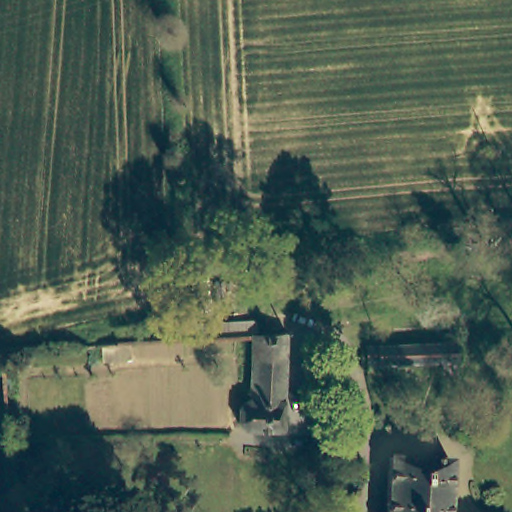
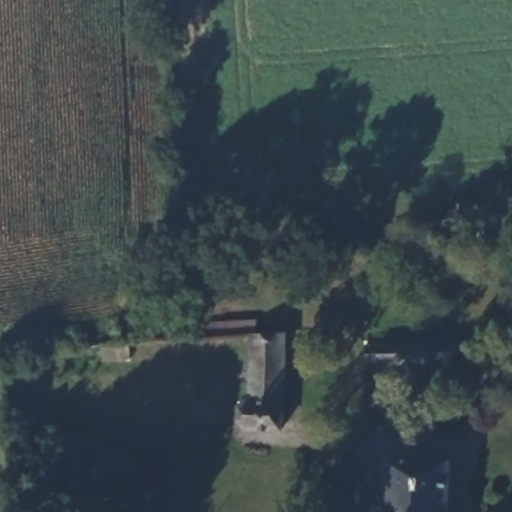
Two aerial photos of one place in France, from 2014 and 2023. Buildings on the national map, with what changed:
unchanged [(278,310),(274,274),(341,269),(345,305),(278,310)]
unchanged [(233,418),(235,397),(248,396),(252,334),(287,331),(283,427),(242,425),(233,418)]
unchanged [(384,361),(367,362),(366,348),(455,344),(455,362),(385,366),(384,361)]
unchanged [(449,512),(384,512),(386,462),(451,465),(449,512)]

